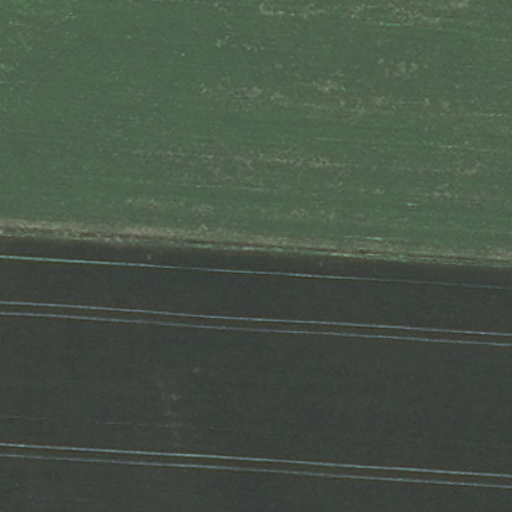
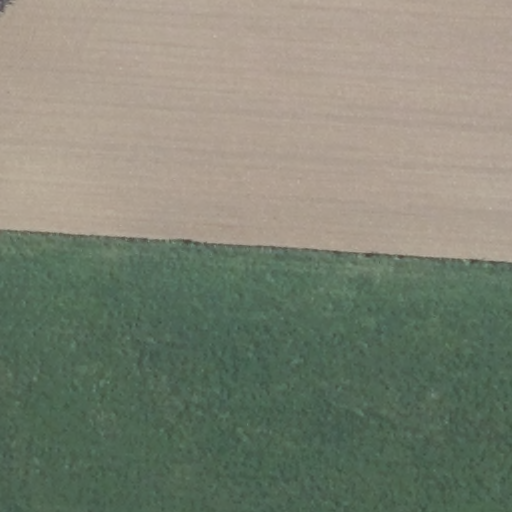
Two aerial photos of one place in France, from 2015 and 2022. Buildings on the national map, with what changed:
[]

